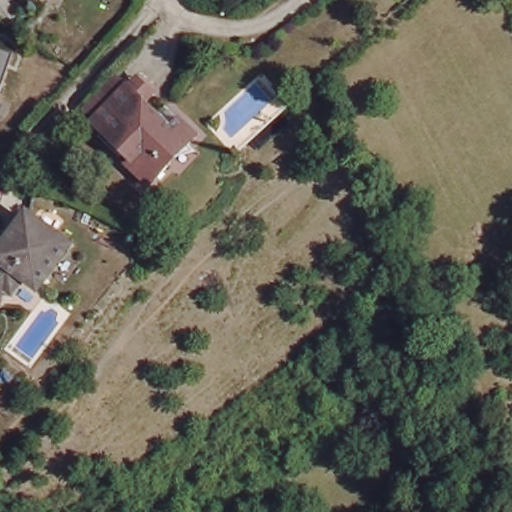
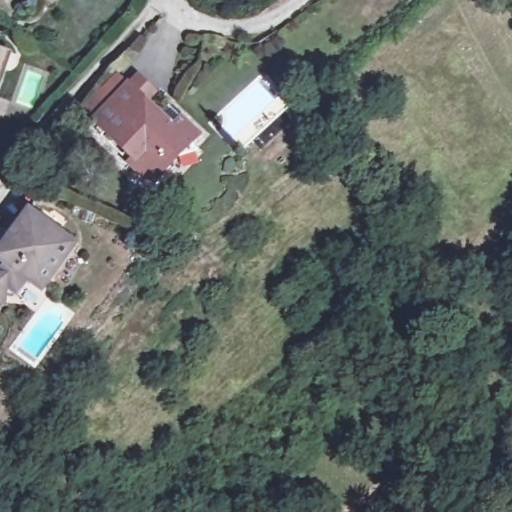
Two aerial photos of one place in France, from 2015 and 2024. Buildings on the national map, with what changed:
unchanged [(43,0),(43,1),(42,0),(43,0)]
unchanged [(0,86),(0,49),(11,53),(0,86)]
unchanged [(173,164),(168,170),(169,177),(153,196),(129,177),(136,170),(115,153),(113,155),(89,135),(93,131),(81,121),(109,89),(120,98),(123,95),(130,86),(149,103),(143,110),(140,114),(155,126),(158,123),(164,116),(176,126),(197,143),(189,153),(198,161),(178,166),(173,164)]
unchanged [(14,312),(1,300),(0,301),(0,251),(34,217),(79,246),(14,312)]

